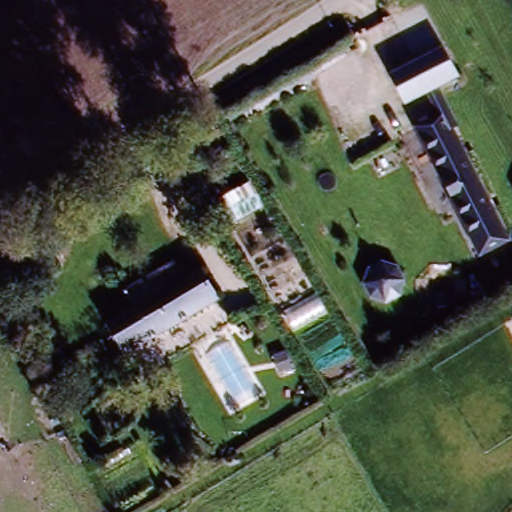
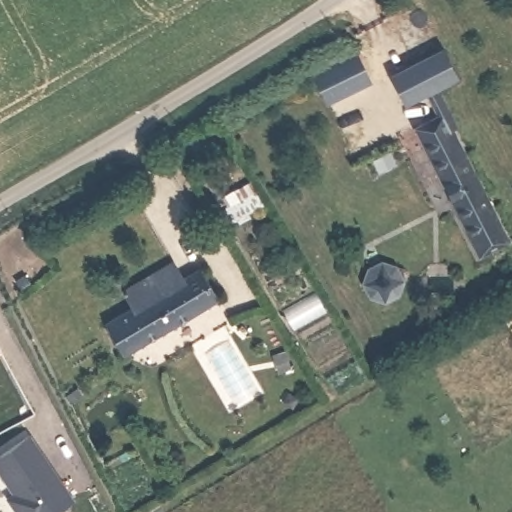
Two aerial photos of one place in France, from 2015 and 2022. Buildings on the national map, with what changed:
unchanged [(459,77),(402,102),(388,79),(443,51),(459,77)]
unchanged [(410,127),(440,111),(503,235),(473,251),(410,127)]
unchanged [(189,275),(207,308),(118,360),(102,328),(133,310),(125,296),(163,273),(169,286),(189,275)]
new [(59,512),(15,512),(6,499),(13,494),(0,474),(0,456),(31,434),(76,501),(59,512)]

